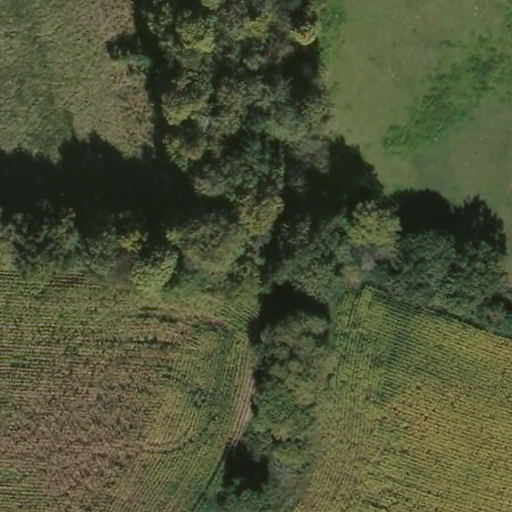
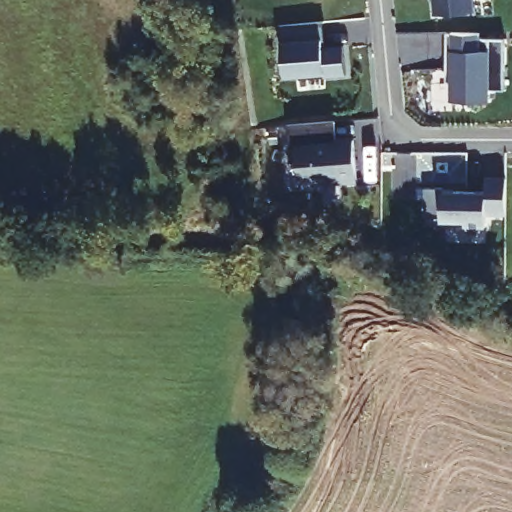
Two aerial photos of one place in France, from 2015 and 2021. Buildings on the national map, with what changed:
new [(434,0),(476,0),(477,8),(436,13),(434,0)]
new [(323,20),(326,46),(342,45),(345,74),(323,76),(322,73),(282,76),(278,23),(319,20),(323,20)]
new [(444,31),(478,32),(477,36),(503,37),(502,89),(487,88),(487,100),(448,99),(448,80),(443,80),(443,69),(444,31)]
new [(337,121),(338,142),(355,140),(357,179),(301,184),(300,161),(293,162),(291,124),(331,121),(337,121)]
new [(424,186),(442,186),(442,189),(486,190),(486,176),(506,177),(506,213),(486,213),(486,224),(465,224),(465,221),(441,221),(441,214),(423,214),(424,186)]

